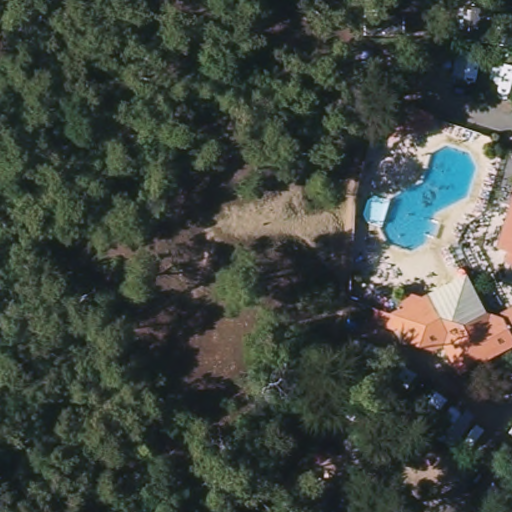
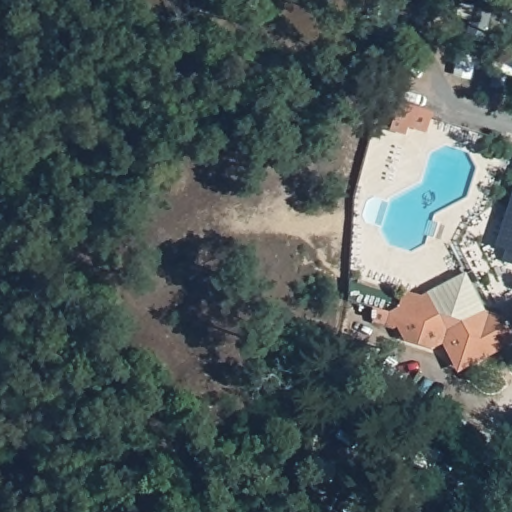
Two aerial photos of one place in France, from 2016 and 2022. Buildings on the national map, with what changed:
unchanged [(428,127),(406,124),(405,129),(394,127),(397,101),(431,106),(428,127)]
unchanged [(512,210),(512,255),(503,254),(512,210)]
unchanged [(503,254),(512,255),(512,267),(502,265),(503,254)]
unchanged [(448,354),(425,347),(412,328),(407,331),(381,320),(379,306),(400,308),(408,296),(429,300),(467,275),(486,305),(488,309),(508,310),(512,308),(512,346),(479,371),(460,344),(448,354)]

